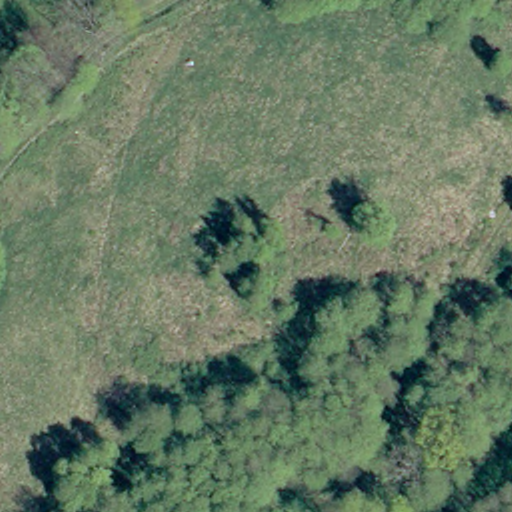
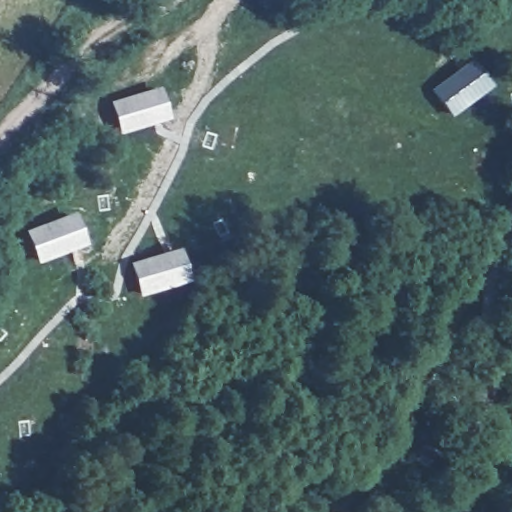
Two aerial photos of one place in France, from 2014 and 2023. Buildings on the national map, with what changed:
new [(460,74),(470,66),(486,87),(475,94),(476,95),(450,115),(432,93),(460,73),(460,74)]
new [(145,97),(158,93),(165,118),(153,122),(153,123),(121,132),(113,106),(145,96),(145,97)]
new [(60,224),(72,220),(81,243),(69,248),(70,249),(37,261),(27,235),(60,223),(60,224)]
new [(165,259),(177,255),(185,280),(172,284),(172,285),(140,295),(132,267),(164,258),(165,259)]

